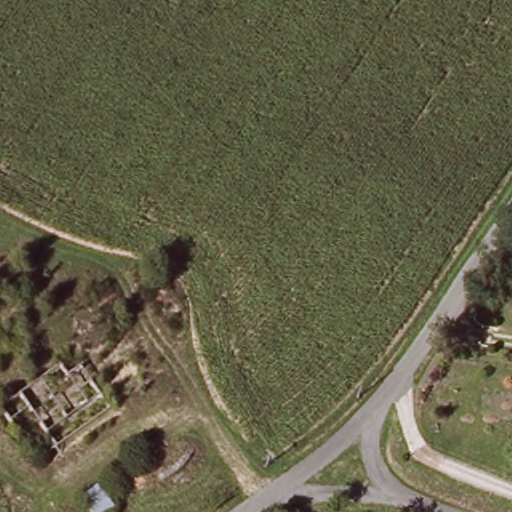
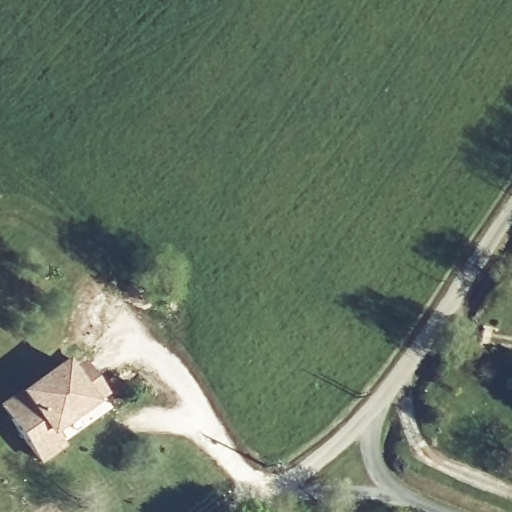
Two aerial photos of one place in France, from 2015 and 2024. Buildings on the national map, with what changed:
new [(61,358),(68,368),(80,360),(105,393),(53,432),(64,447),(38,466),(0,412),(0,405),(16,392),(61,358)]

